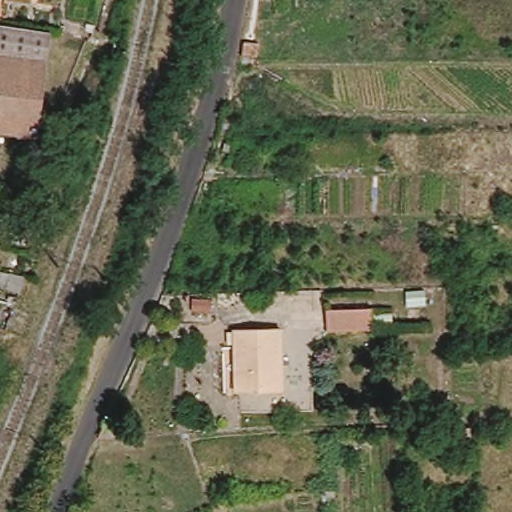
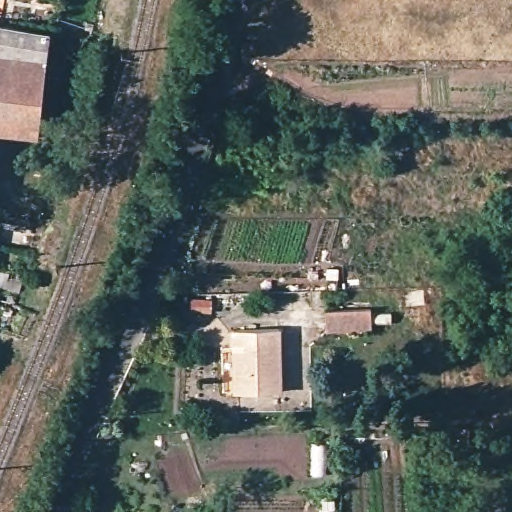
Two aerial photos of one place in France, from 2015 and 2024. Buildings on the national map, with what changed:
unchanged [(31,142),(0,135),(0,28),(51,39),(38,134),(31,142)]
unchanged [(188,316),(188,306),(183,305),(183,297),(211,299),(209,316),(188,316)]
unchanged [(372,327),(329,329),(329,309),(371,307),(372,327)]
unchanged [(279,390),(233,394),(232,364),(237,365),(236,346),(232,346),(231,331),(276,328),(279,390)]
unchanged [(94,440),(109,403),(126,408),(116,439),(94,440)]

